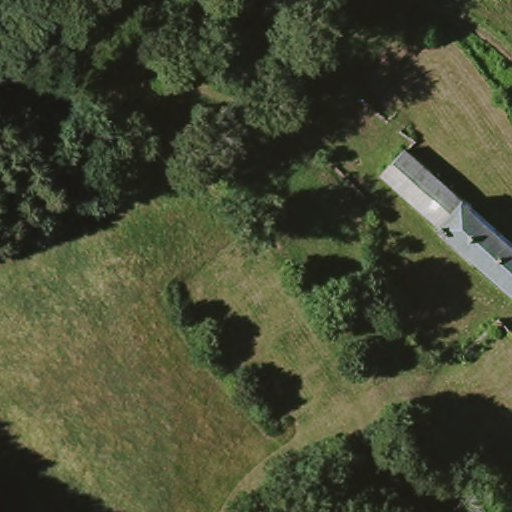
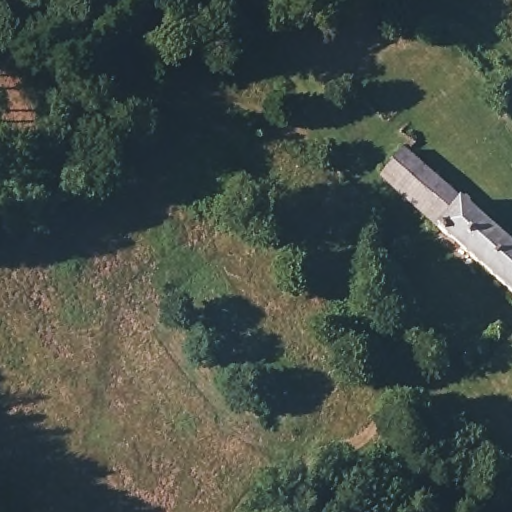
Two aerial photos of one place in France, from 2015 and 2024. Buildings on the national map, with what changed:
unchanged [(457,201),(461,197),(512,240),(512,289),(489,271),(438,230),(380,179),(407,153),(457,201)]

